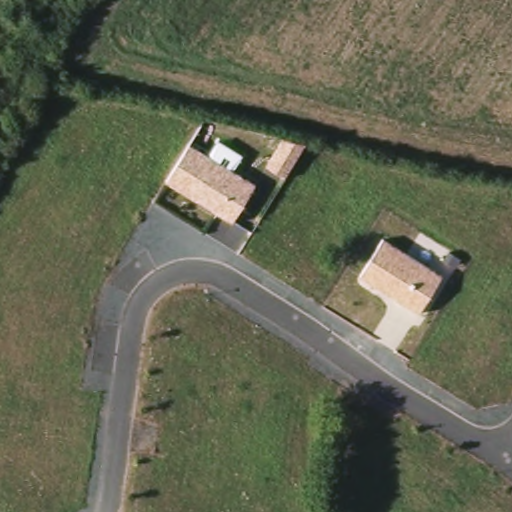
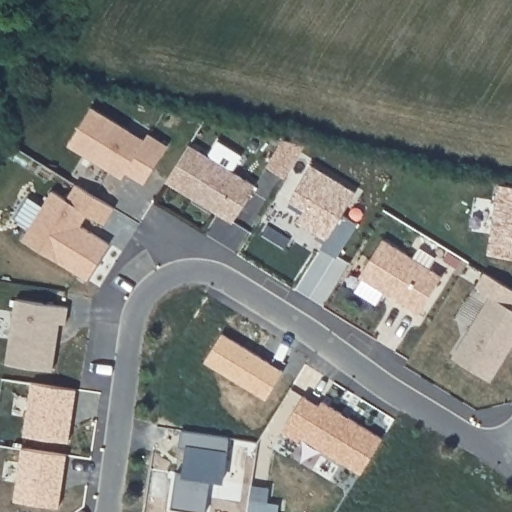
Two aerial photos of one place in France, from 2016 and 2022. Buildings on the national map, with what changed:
new [(98,110),(151,143),(155,137),(174,149),(150,187),(132,176),(123,171),(120,177),(74,148),(98,110)]
new [(284,138),(306,144),(286,177),(267,166),(284,138)]
unchanged [(167,181),(191,145),(257,184),(234,221),(167,181)]
new [(355,191),(343,212),(357,221),(336,255),(322,247),(326,238),(298,220),(305,210),(289,200),(311,164),(355,191)]
new [(71,204),(80,189),(118,213),(109,229),(92,218),(84,231),(113,249),(91,284),(26,244),(56,196),(71,204)]
unchanged [(360,275),(382,239),(442,276),(418,313),(360,275)]
new [(512,351),(492,382),(456,360),(494,298),(512,309),(512,351)]
new [(19,304),(72,312),(69,328),(63,327),(56,375),(10,368),(19,304)]
new [(24,434),(31,383),(76,389),(69,441),(24,434)]
new [(362,473),(301,437),(299,440),(283,431),(304,397),(319,405),(321,402),(381,438),(362,473)]
new [(229,436),(224,480),(211,479),(206,511),(170,506),(176,472),(182,473),(187,445),(180,444),(180,429),(229,436)]
new [(59,507),(14,500),(20,447),(67,455),(59,507)]

